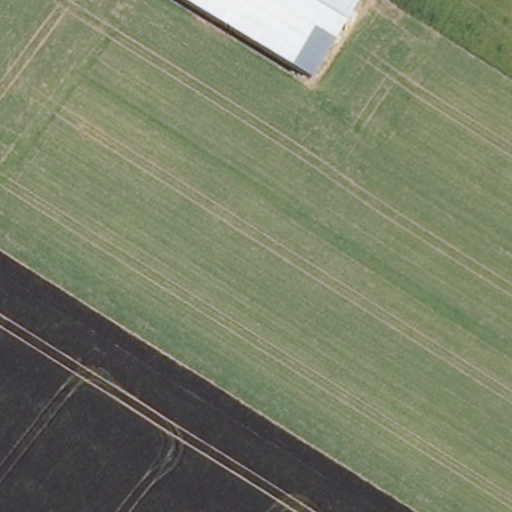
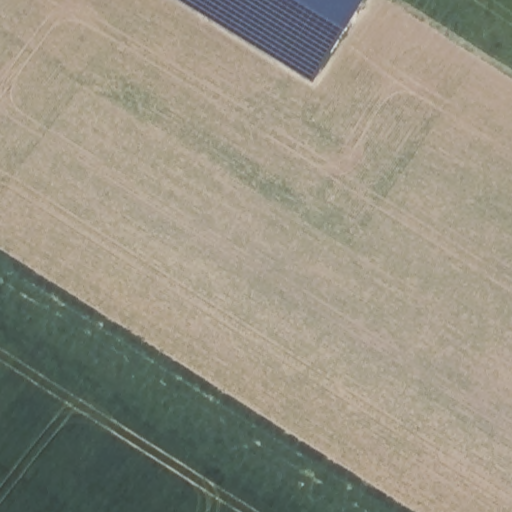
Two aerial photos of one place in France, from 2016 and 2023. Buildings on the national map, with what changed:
unchanged [(195,0),(356,0),(311,72),(195,0)]

